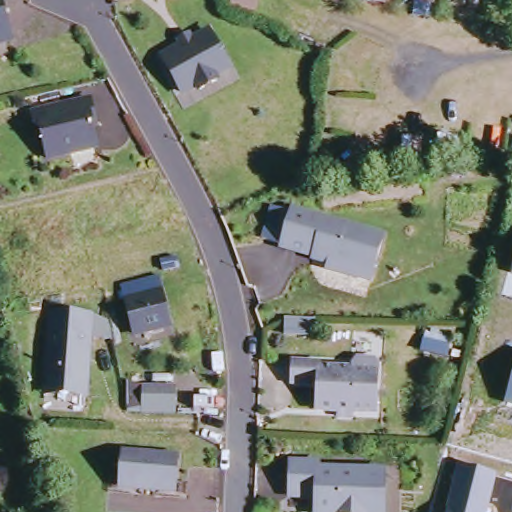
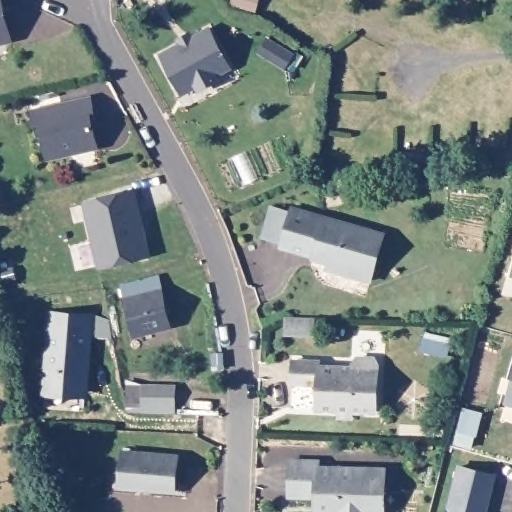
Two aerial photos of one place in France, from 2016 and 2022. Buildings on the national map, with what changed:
unchanged [(0,43),(0,0),(4,0),(6,8),(13,39),(0,43)]
unchanged [(229,66),(214,75),(216,79),(199,89),(197,84),(182,92),(162,55),(181,44),(179,39),(188,34),(190,39),(207,29),(229,66)]
unchanged [(101,141),(52,151),(45,117),(56,114),(53,102),(95,92),(99,109),(101,118),(97,119),(97,120),(101,141)]
new [(82,203),(134,192),(152,258),(99,271),(82,203)]
unchanged [(330,264),(315,260),(315,256),(283,247),(295,208),(385,236),(373,282),(337,271),(329,269),(330,264)]
unchanged [(160,283),(169,317),(135,325),(126,291),(160,283)]
unchanged [(45,390),(47,374),(49,324),(49,310),(91,311),(87,385),(87,392),(45,390)]
unchanged [(315,334),(288,334),(288,318),(315,318),(315,334)]
unchanged [(330,414),(330,407),(310,406),(310,381),(282,379),(283,354),(312,355),(312,362),(345,363),(345,356),(350,353),(367,353),(372,364),(370,408),(345,407),(345,415),(330,414)]
unchanged [(512,407),(505,405),(512,378),(512,407)]
unchanged [(127,413),(128,381),(144,387),(174,389),(174,415),(144,413),(127,413)]
unchanged [(179,460),(172,494),(115,482),(122,448),(179,460)]
unchanged [(319,497),(294,497),(295,462),(322,462),(322,469),(389,471),(387,511),(387,512),(319,512),(319,509),(319,497)]
unchanged [(498,475),(489,512),(447,512),(459,466),(498,475)]

